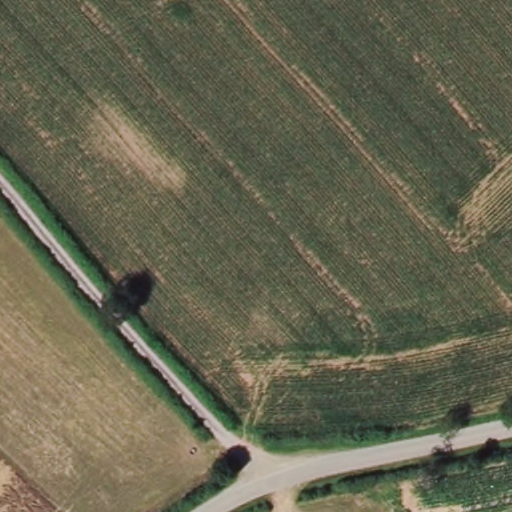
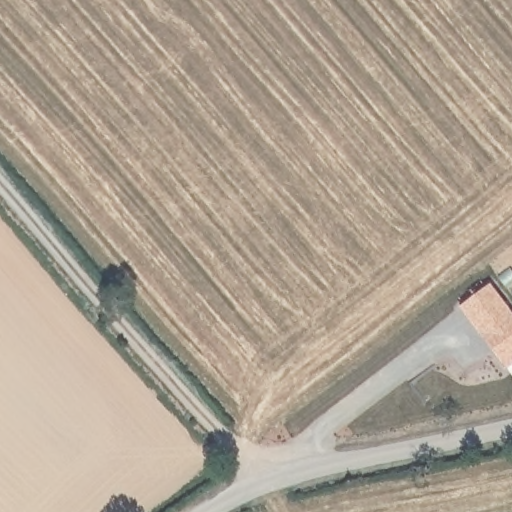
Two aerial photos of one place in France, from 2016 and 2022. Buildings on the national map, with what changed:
new [(508,368),(460,306),(490,283),(512,310),(512,365),(508,368)]

